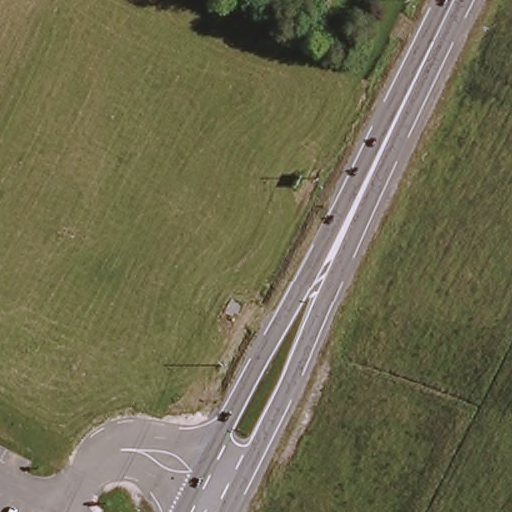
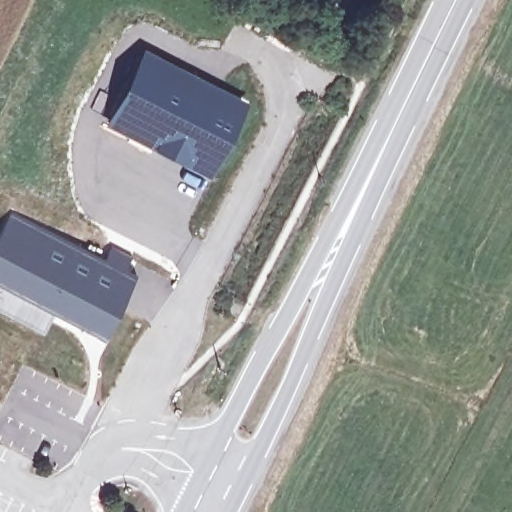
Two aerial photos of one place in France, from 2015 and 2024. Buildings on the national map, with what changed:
new [(144,48),(245,100),(225,145),(207,178),(106,124),(144,48)]
new [(10,212),(103,260),(111,245),(133,257),(127,272),(134,276),(102,337),(40,309),(0,288),(0,232),(10,212)]

